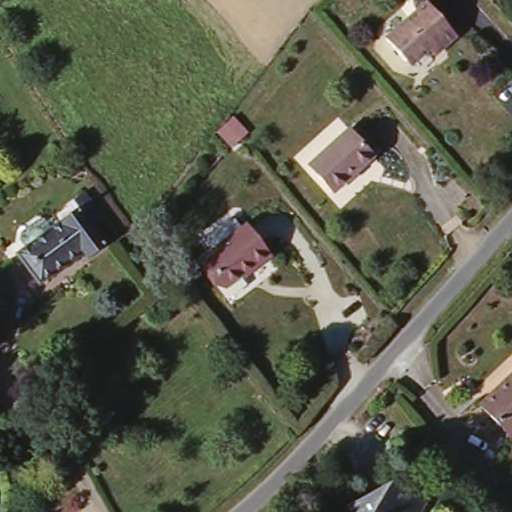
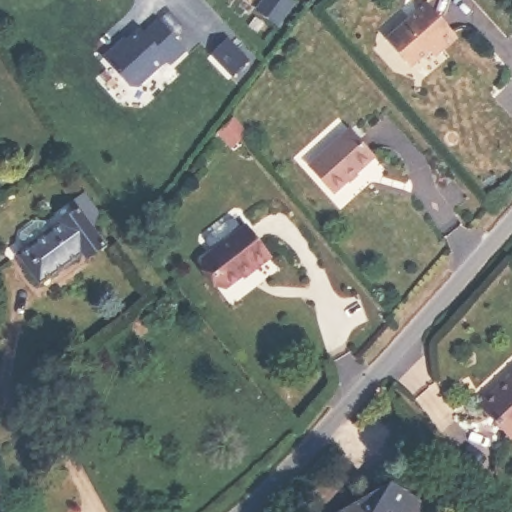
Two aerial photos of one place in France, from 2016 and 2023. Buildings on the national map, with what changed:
new [(279,26),(256,10),(263,0),(297,0),(279,26)]
unchanged [(433,49),(419,61),(407,60),(388,38),(431,1),(459,37),(446,48),(438,54),(433,49)]
new [(107,57),(127,38),(130,40),(139,30),(144,33),(156,21),(186,48),(172,62),(167,57),(137,87),(107,57)]
unchanged [(214,133),(222,125),(229,118),(244,134),(236,141),(229,149),(214,133)]
unchanged [(312,163),(352,126),(374,151),(335,188),(312,163)]
unchanged [(50,223),(56,229),(83,204),(90,213),(87,217),(107,242),(85,261),(81,256),(46,284),(17,250),(50,223)]
unchanged [(229,289),(209,260),(220,252),(212,241),(214,236),(238,219),(243,220),(250,231),(255,228),(277,260),(259,272),(250,278),(248,276),(229,289)]
unchanged [(512,427),(509,430),(481,394),(512,368),(512,427)]
unchanged [(371,500),(386,479),(422,512),(330,512),(365,489),(371,500)]

